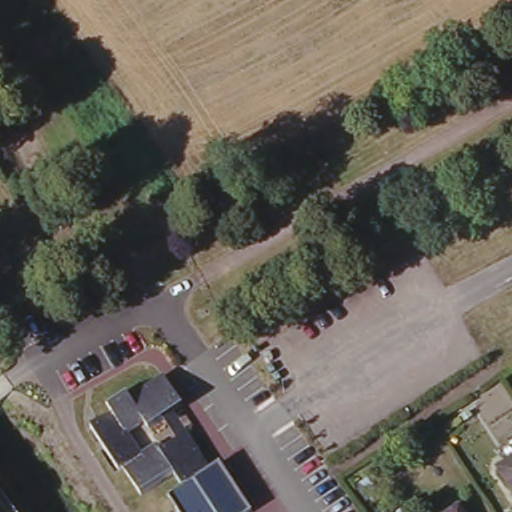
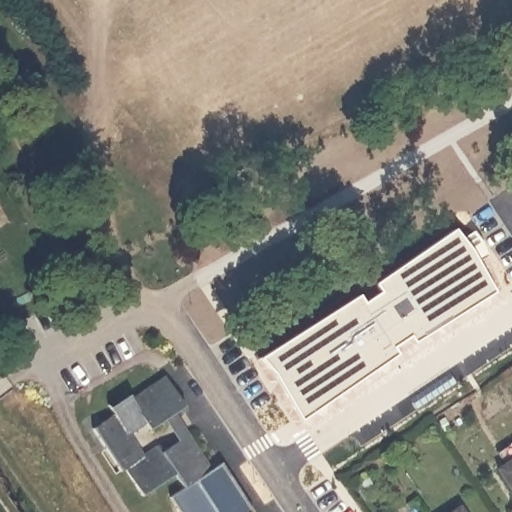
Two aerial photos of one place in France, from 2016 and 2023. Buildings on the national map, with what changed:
new [(347,298),(358,314),(376,301),(367,286),(451,229),(494,299),(412,354),(400,337),(381,350),(392,367),(305,429),(256,358),(347,298)]
unchanged [(169,500),(183,490),(174,476),(140,498),(125,476),(119,480),(87,434),(109,421),(104,412),(124,398),(127,404),(160,382),(180,412),(146,433),(141,426),(124,438),(139,460),(154,450),(160,453),(184,438),(207,472),(218,466),(252,512),(177,512),(169,500)]
unchanged [(512,460),(512,480),(503,466),(512,460)]
unchanged [(456,511),(457,512),(454,512),(456,511)]

